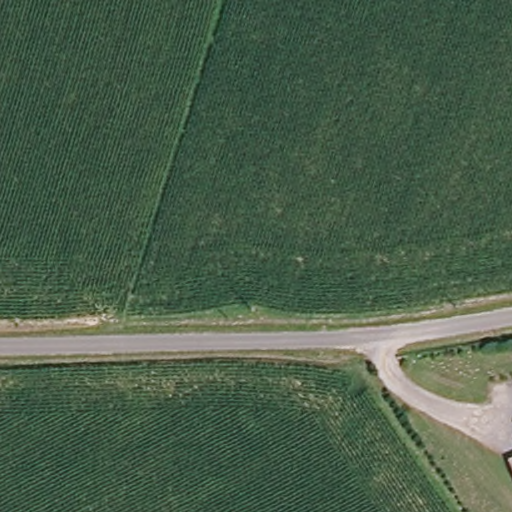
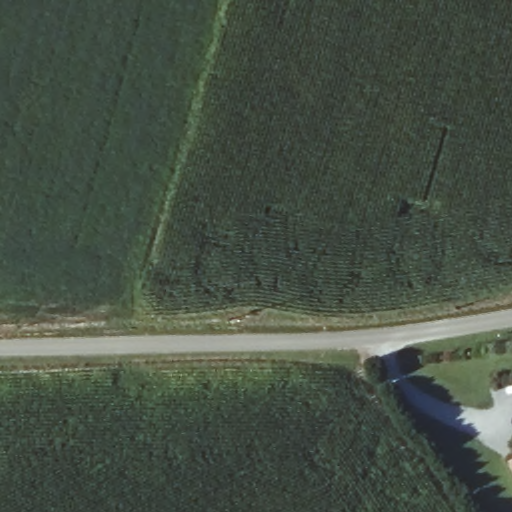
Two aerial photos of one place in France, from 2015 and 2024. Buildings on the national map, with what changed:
[]

